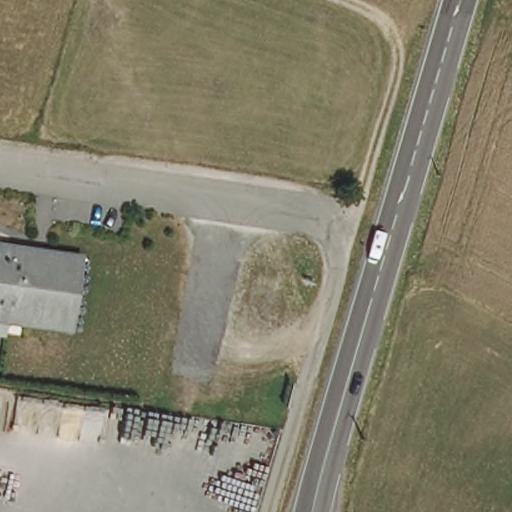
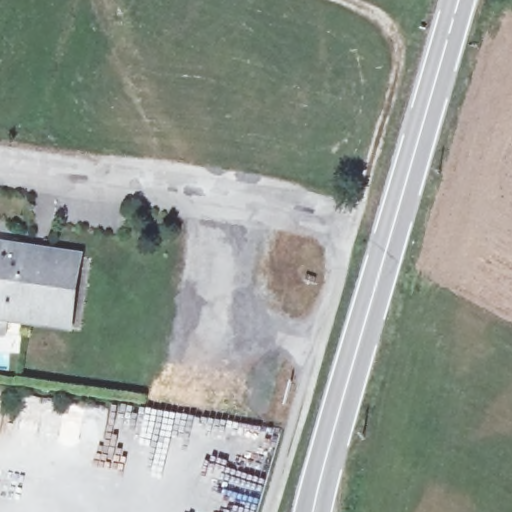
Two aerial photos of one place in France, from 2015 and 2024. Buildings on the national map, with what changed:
unchanged [(0,315),(0,241),(35,247),(74,253),(71,268),(65,311),(63,326),(23,319),(0,315)]

